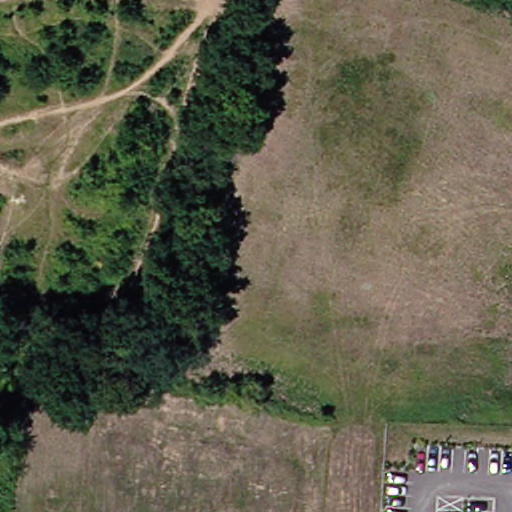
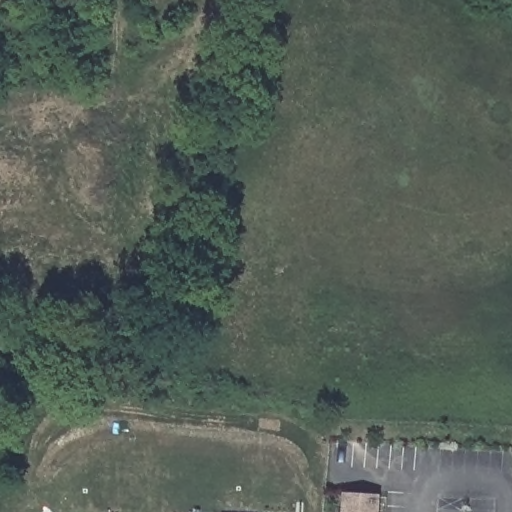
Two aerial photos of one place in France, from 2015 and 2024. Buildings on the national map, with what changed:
new [(341,492),(379,496),(379,512),(340,512),(341,492)]

